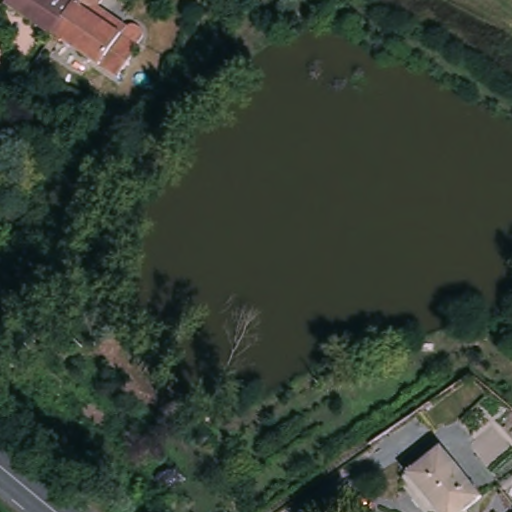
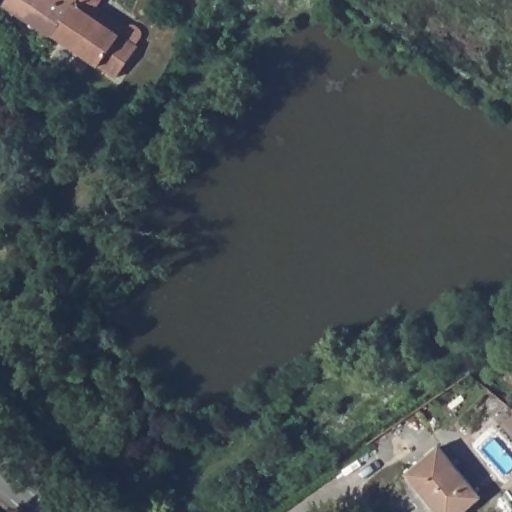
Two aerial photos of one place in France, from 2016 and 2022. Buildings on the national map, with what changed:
unchanged [(75,33),(32,0),(101,0),(97,5),(75,33)]
unchanged [(97,5),(157,55),(137,83),(75,33),(97,5)]
unchanged [(476,501),(462,512),(430,512),(401,475),(435,447),(476,501)]

